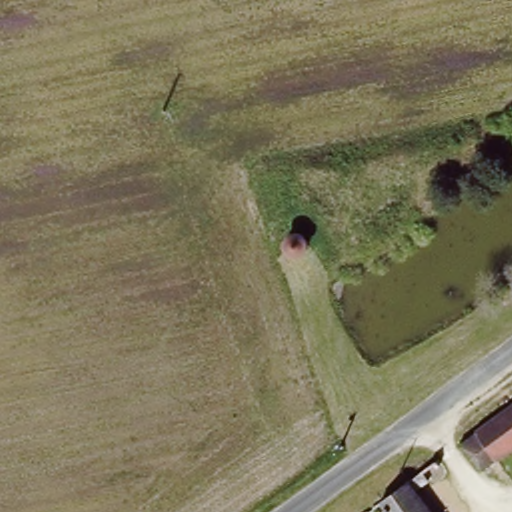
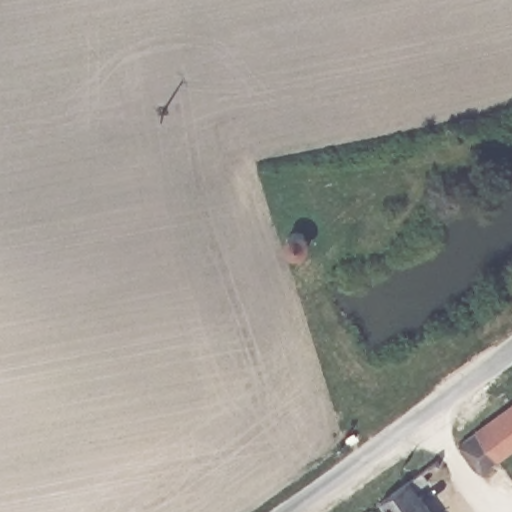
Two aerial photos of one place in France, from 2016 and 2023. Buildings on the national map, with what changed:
unchanged [(292,233),(297,232),(302,234),(305,237),(307,241),(307,246),(305,251),(301,254),(296,255),(290,254),(287,250),(285,246),(285,241),(288,236),(292,233)]
unchanged [(512,400),(512,453),(479,477),(457,441),(512,400)]
unchanged [(416,487),(434,512),(381,512),(416,487)]

